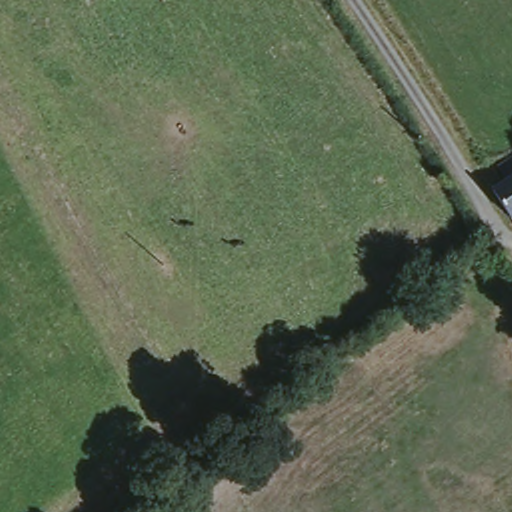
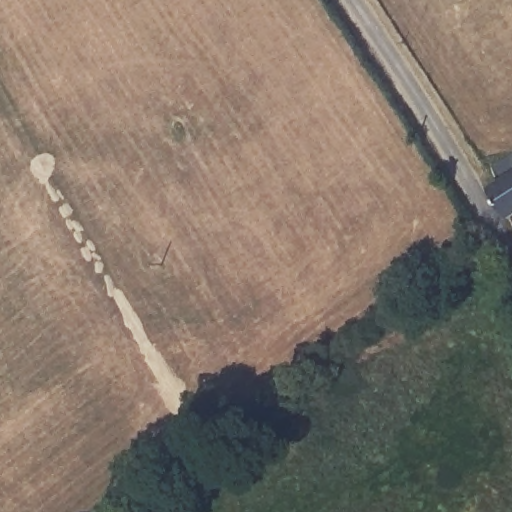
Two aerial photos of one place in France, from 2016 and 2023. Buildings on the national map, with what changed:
unchanged [(508,175),(500,162),(512,154),(512,213),(493,184),(508,175)]

